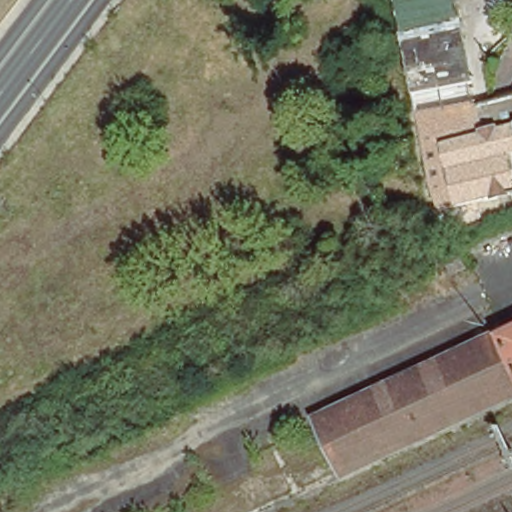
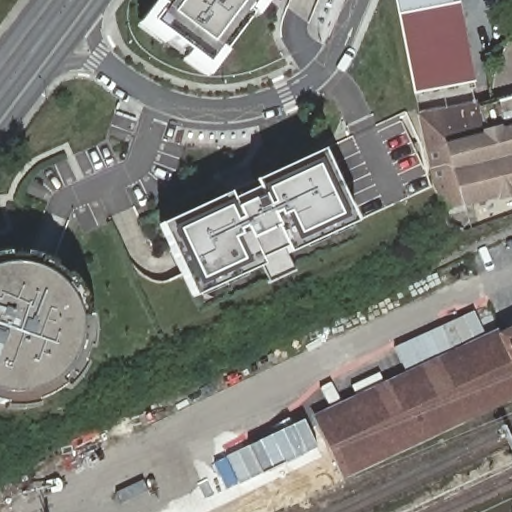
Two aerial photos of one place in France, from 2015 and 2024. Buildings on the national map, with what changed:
new [(250,15),(223,50),(226,52),(208,76),(186,59),(191,51),(170,36),(166,42),(141,23),(156,0),(158,0),(163,3),(165,0),(268,0),(255,18),(250,15)]
unchanged [(459,0),(479,101),(468,105),(466,99),(421,113),(399,0),(459,0)]
unchanged [(512,151),(506,152),(491,97),(512,91),(512,151)]
unchanged [(428,146),(422,117),(421,113),(466,99),(468,105),(479,101),(491,97),(506,152),(512,151),(512,191),(483,199),(488,217),(463,227),(447,224),(428,148),(428,146)]
new [(189,291),(161,224),(227,194),(230,199),(256,188),(254,182),(322,151),(355,222),(287,252),(284,249),(260,260),(263,266),(245,273),(242,267),(189,291)]
new [(86,350),(81,362),(86,365),(75,378),(66,387),(63,385),(51,395),(35,401),(35,406),(23,408),(6,411),(6,403),(0,402),(0,250),(8,249),(9,256),(25,256),(26,250),(42,252),(58,260),(55,267),(67,276),(72,271),(82,285),(90,300),(84,302),(87,316),(95,313),(96,333),(94,351),(86,350)]
unchanged [(497,328),(499,334),(317,417),(315,412),(497,328)]
unchanged [(512,328),(512,392),(344,471),(317,417),(499,334),(512,328)]
unchanged [(512,400),(346,477),(344,471),(512,392),(512,400)]

